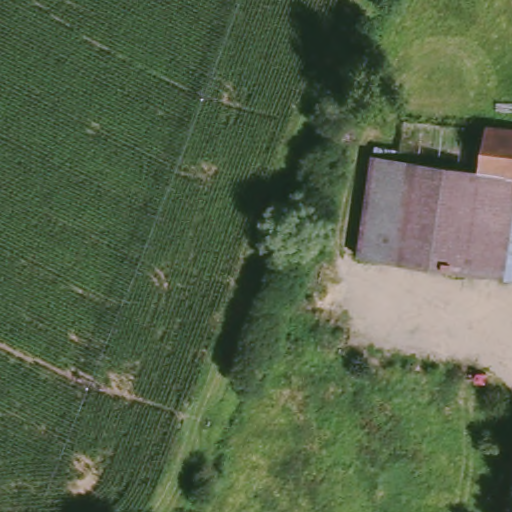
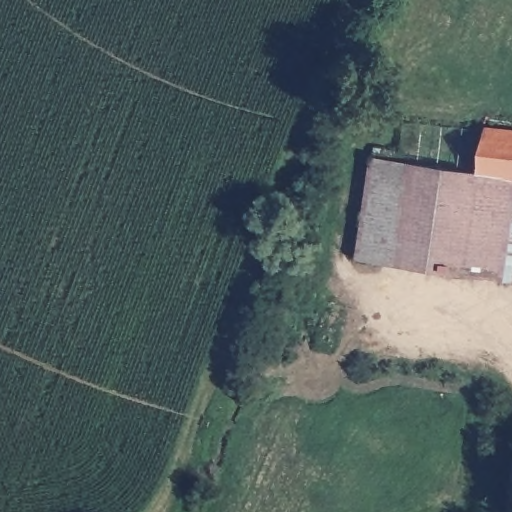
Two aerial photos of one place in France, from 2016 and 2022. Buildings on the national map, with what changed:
unchanged [(512,132),(512,179),(480,175),(487,128),(512,132)]
unchanged [(359,260),(374,160),(480,175),(469,245),(465,275),(359,260)]
unchanged [(512,179),(512,237),(510,250),(469,245),(480,175),(512,179)]
unchanged [(510,250),(505,280),(465,275),(469,245),(510,250)]

